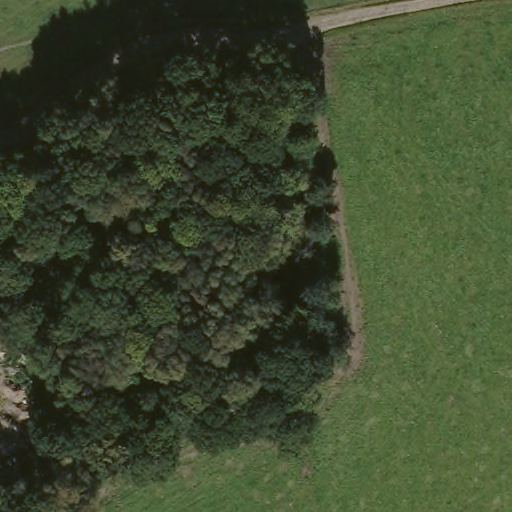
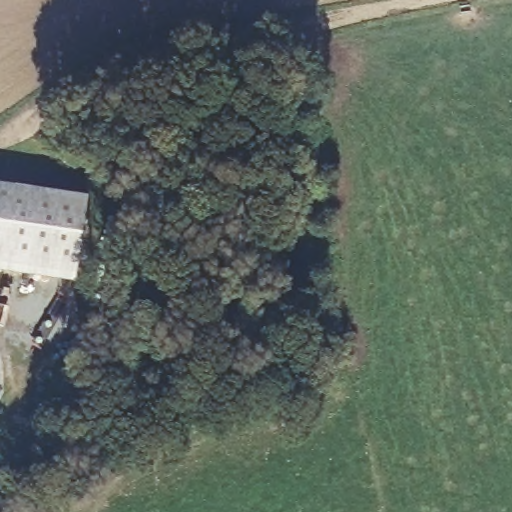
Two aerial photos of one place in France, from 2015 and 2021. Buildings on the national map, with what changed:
new [(86,203),(73,286),(0,276),(0,190),(86,203)]

